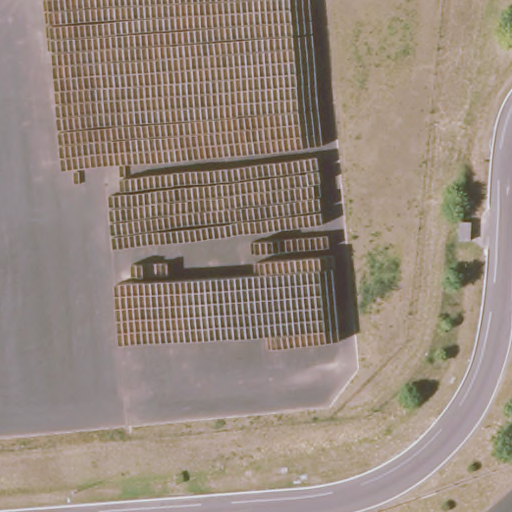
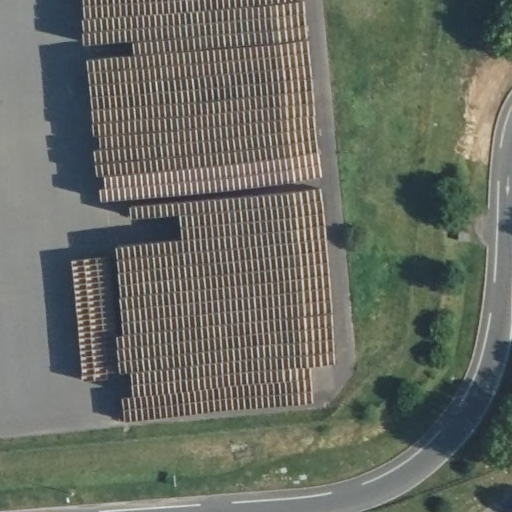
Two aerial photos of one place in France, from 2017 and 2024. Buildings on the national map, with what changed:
unchanged [(463,216),(471,217),(469,237),(458,236),(459,216),(463,216)]

